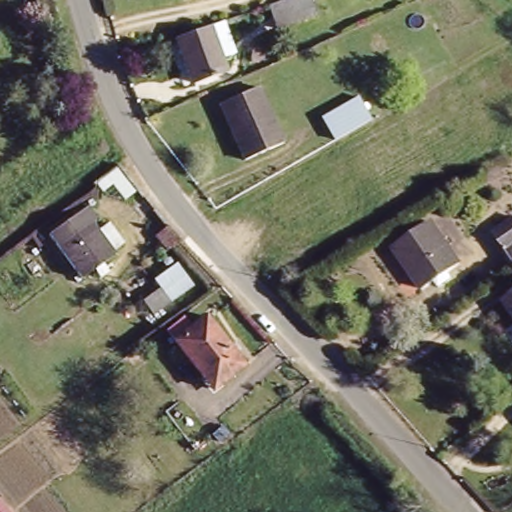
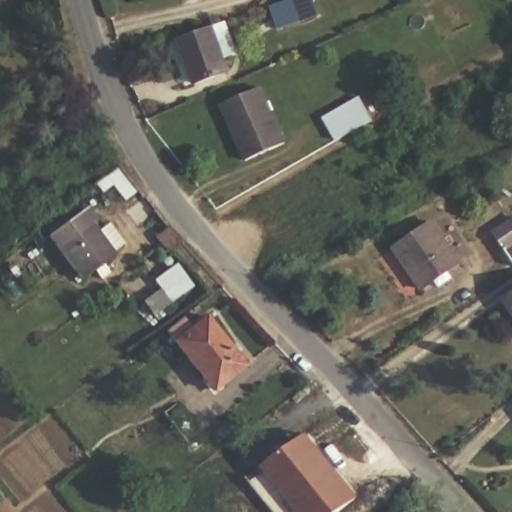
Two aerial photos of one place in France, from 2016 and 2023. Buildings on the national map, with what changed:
unchanged [(320,6),(318,7),(297,14),(297,11),(277,18),(273,8),(292,0),(317,0),(320,6)]
unchanged [(226,72),(195,83),(177,37),(209,25),(226,72)]
unchanged [(255,88),(280,144),(242,161),(217,105),(255,88)]
unchanged [(375,116),(344,135),(330,112),(362,93),(375,116)]
unchanged [(115,254),(79,279),(49,235),(89,206),(97,218),(92,221),(115,254)]
unchanged [(392,245),(430,219),(457,259),(420,285),(392,245)]
unchanged [(512,256),(497,233),(512,223),(512,256)]
unchanged [(165,253),(152,239),(167,226),(180,241),(165,253)]
unchanged [(512,318),(501,303),(512,295),(512,318)]
unchanged [(207,317),(244,366),(212,390),(175,341),(207,317)]
new [(273,512),(249,482),(265,474),(260,468),(305,435),(357,499),(340,512),(273,512)]

